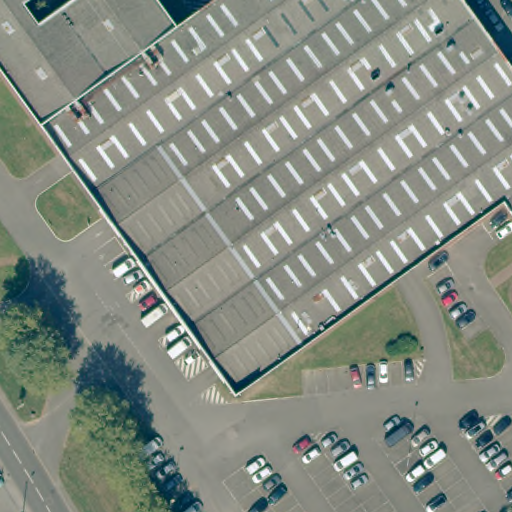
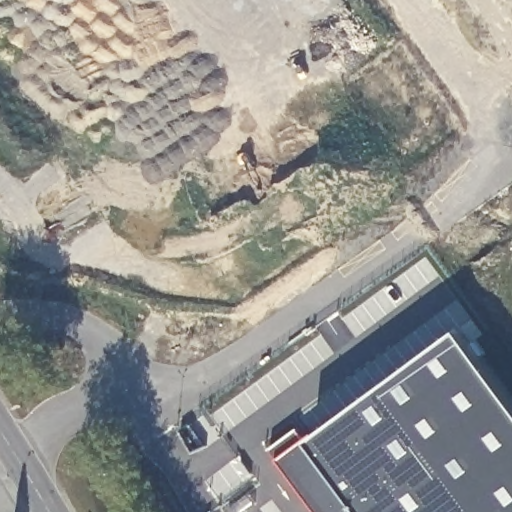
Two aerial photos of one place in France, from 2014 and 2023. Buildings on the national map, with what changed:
demolished [(0,0),(161,0),(169,11),(177,22),(205,1),(206,0),(465,0),(512,64),(512,207),(504,196),(237,391),(0,65),(0,0)]
new [(307,441),(344,413),(349,419),(464,334),(512,399),(512,512),(315,512),(278,462),(282,459),(275,449),(271,452),(270,451),(299,430),(307,441)]

